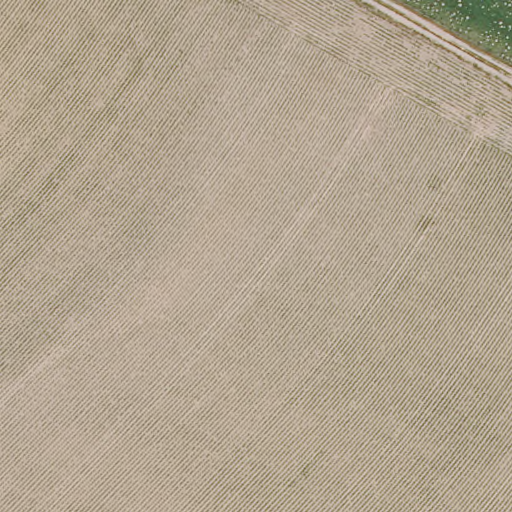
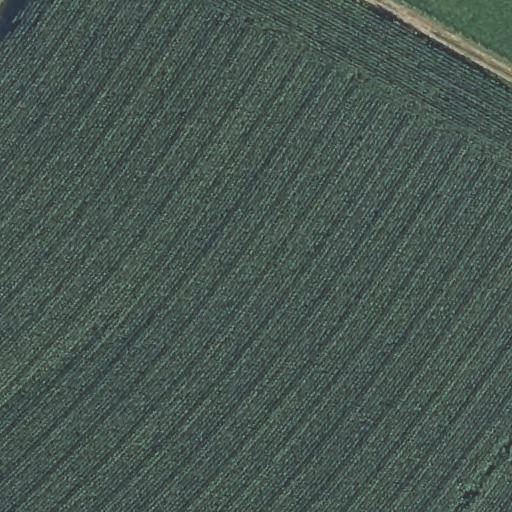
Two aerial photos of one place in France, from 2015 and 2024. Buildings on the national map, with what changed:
[]

